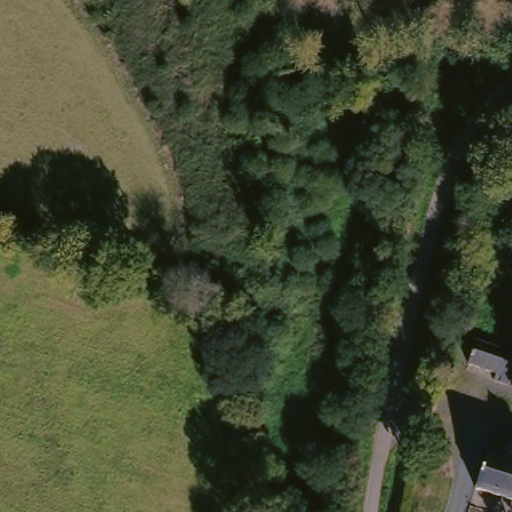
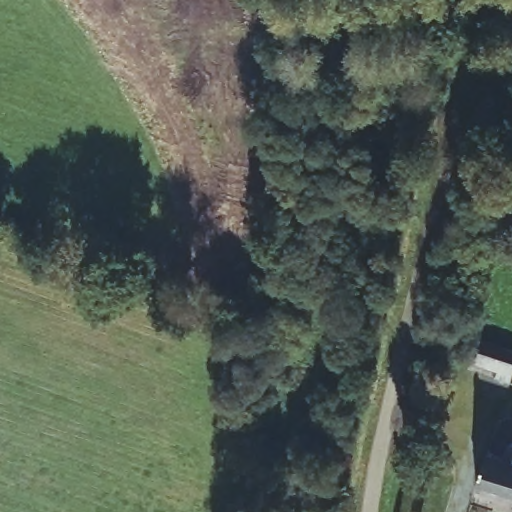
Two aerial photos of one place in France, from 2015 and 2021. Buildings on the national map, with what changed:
unchanged [(466,360),(473,337),(512,349),(512,378),(511,382),(493,377),(496,369),(466,360)]
unchanged [(497,451),(498,447),(508,450),(512,451),(512,499),(488,491),(497,451)]

